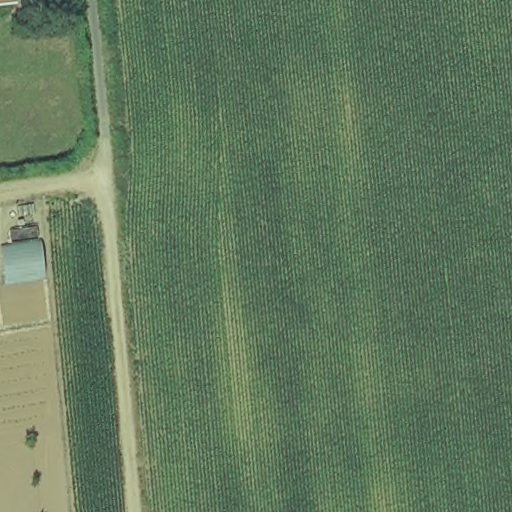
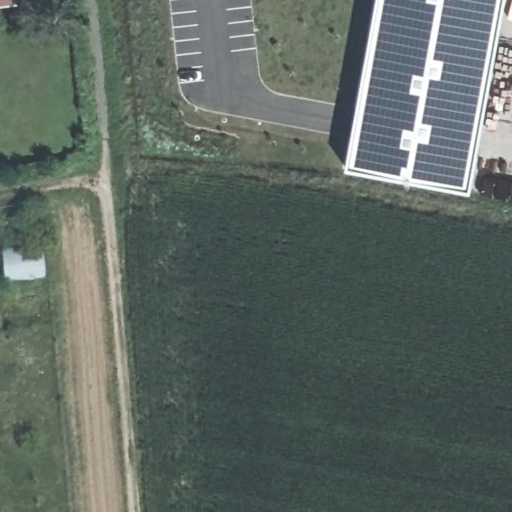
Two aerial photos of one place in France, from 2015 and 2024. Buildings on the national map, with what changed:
new [(343,167),(371,0),(500,0),(469,189),(343,167)]
demolished [(0,327),(0,251),(65,242),(71,283),(90,280),(96,310),(0,327)]

